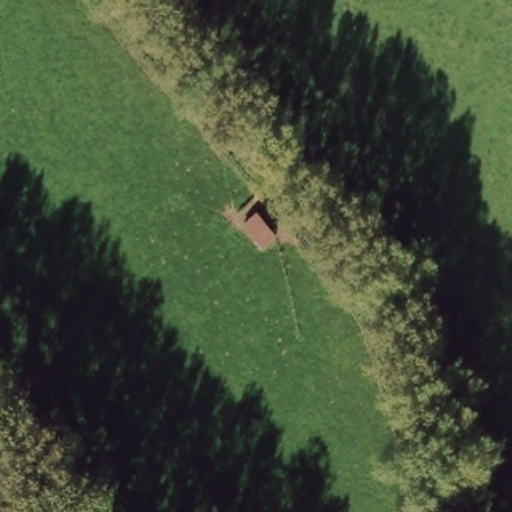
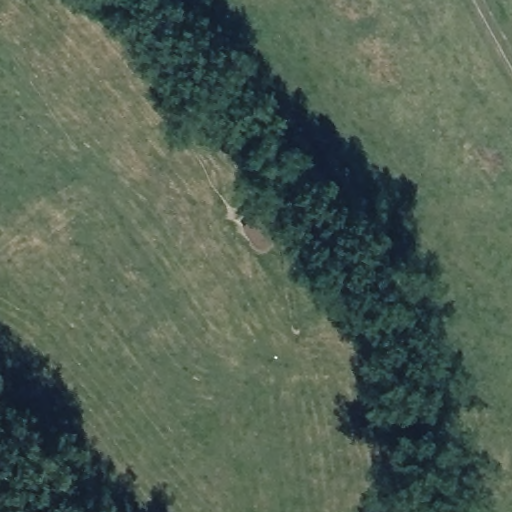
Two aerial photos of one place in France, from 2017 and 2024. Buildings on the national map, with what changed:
unchanged [(261,250),(241,224),(256,213),(277,238),(261,250)]

